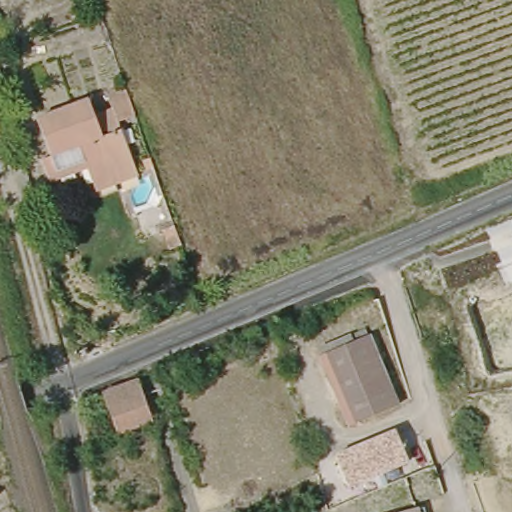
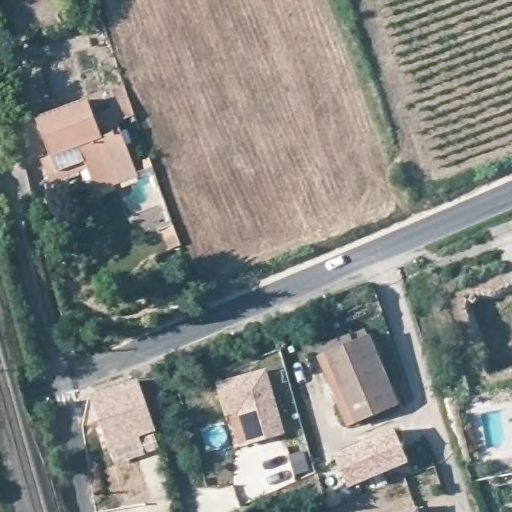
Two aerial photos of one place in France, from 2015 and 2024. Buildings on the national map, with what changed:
unchanged [(86,168),(83,157),(52,166),(50,160),(45,145),(36,121),(46,116),(70,108),(79,107),(78,105),(91,101),(94,111),(107,106),(102,91),(113,88),(122,117),(111,121),(121,151),(103,156),(106,163),(86,168)]
unchanged [(128,149),(139,177),(93,191),(86,174),(47,185),(39,163),(50,160),(52,166),(83,157),(86,168),(106,163),(103,156),(121,151),(128,149)]
unchanged [(162,232),(154,212),(165,208),(173,228),(162,232)]
unchanged [(320,357),(370,335),(401,409),(353,429),(320,357)]
new [(264,372),(283,436),(235,450),(216,386),(264,372)]
new [(157,432),(139,438),(145,453),(116,463),(91,397),(138,379),(157,432)]
demolished [(124,433),(113,400),(143,391),(149,409),(153,424),(124,433)]
unchanged [(349,488),(335,454),(394,430),(408,464),(349,488)]
unchanged [(417,511),(417,512),(411,512),(417,511)]

